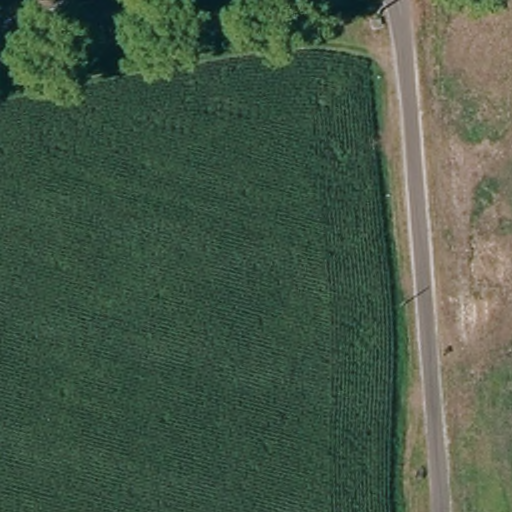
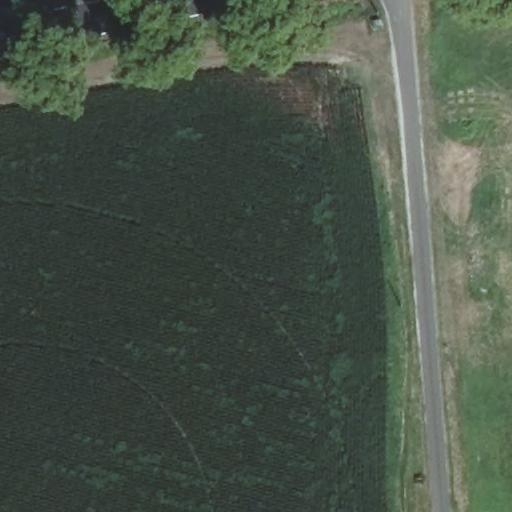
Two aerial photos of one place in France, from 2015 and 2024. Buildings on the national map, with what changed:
[]

